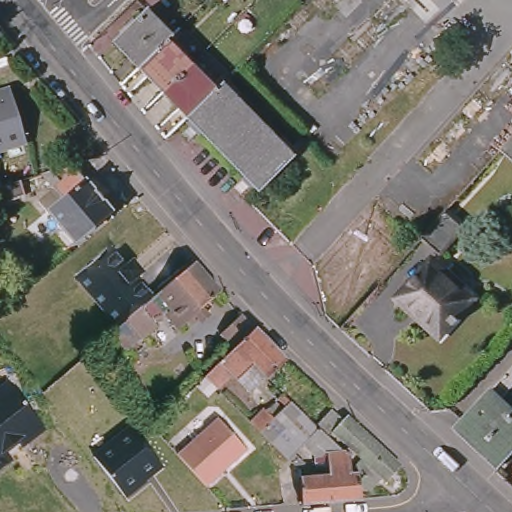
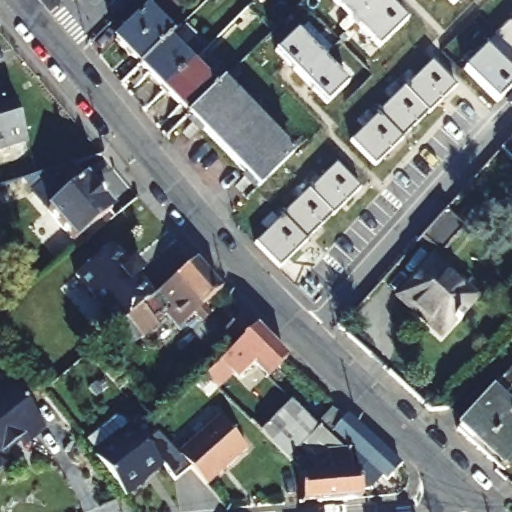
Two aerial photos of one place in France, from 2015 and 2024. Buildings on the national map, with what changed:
new [(330,0),(378,0),(354,24),(330,0)]
new [(354,24),(378,0),(384,0),(406,23),(378,49),(354,24)]
new [(458,0),(452,7),(445,0),(458,0)]
unchanged [(168,39),(139,67),(114,41),(146,10),(171,35),(168,39)]
new [(510,24),(512,22),(512,51),(495,34),(508,21),(510,24)]
new [(296,31),(321,58),(300,78),(274,51),(296,31)]
new [(512,63),(506,69),(512,75),(512,82),(502,93),(504,95),(496,103),(464,70),(484,49),(483,46),(495,34),(512,51),(512,63)]
unchanged [(168,39),(191,64),(163,91),(139,67),(168,39)]
new [(321,58),(347,84),(326,104),(300,78),(321,58)]
new [(428,113),(404,89),(431,62),(455,87),(428,114),(427,113),(428,113)]
unchanged [(188,116),(163,91),(191,64),(216,88),(188,116)]
unchanged [(259,188),(188,116),(216,88),(220,84),(291,155),(259,188)]
new [(400,139),(376,114),(403,88),(428,113),(401,139),(400,139)]
unchanged [(8,89),(23,140),(0,148),(0,91),(8,89)]
new [(349,141),(376,115),(400,139),(401,139),(402,139),(374,166),(349,141)]
unchanged [(79,234),(51,203),(66,190),(48,168),(75,159),(115,204),(79,234)]
new [(335,164),(360,189),(333,216),(331,215),(332,214),(309,190),(335,164)]
demolished [(0,201),(0,186),(19,180),(23,194),(0,201)]
new [(305,241),(281,217),(308,189),(332,214),(331,215),(305,241)]
unchanged [(439,250),(423,235),(446,209),(463,224),(439,250)]
new [(255,244),(281,218),(305,241),(306,240),(307,242),(279,269),(255,244)]
new [(109,246),(155,294),(126,319),(103,294),(95,300),(74,278),(109,246)]
unchanged [(439,337),(396,299),(433,258),(475,295),(439,337)]
unchanged [(194,260),(219,290),(178,325),(166,312),(171,308),(165,300),(159,305),(162,309),(151,317),(120,344),(109,334),(194,260)]
unchanged [(209,377),(238,348),(226,335),(247,315),(259,328),(291,359),(276,373),(273,377),(271,376),(254,392),(236,374),(221,389),(209,378),(209,377)]
unchanged [(44,428),(20,446),(16,440),(6,448),(7,452),(12,458),(0,467),(0,388),(8,382),(44,428)]
unchanged [(456,428),(493,387),(512,404),(512,453),(499,467),(456,428)]
unchanged [(320,474),(318,454),(306,443),(291,459),(263,431),(275,419),(276,418),(277,417),(284,411),(286,409),(294,400),(317,422),(321,425),(329,433),(339,443),(339,446),(341,450),(351,449),(351,454),(354,471),(360,471),(363,470),(365,491),(366,492),(366,499),(306,504),(304,482),(304,475),(320,474)]
unchanged [(221,417),(249,449),(204,488),(176,455),(221,417)]
unchanged [(345,440),(339,446),(339,443),(329,433),(344,417),(356,429),(361,424),(404,465),(391,482),(386,478),(373,490),(365,491),(363,470),(369,463),(345,440)]
unchanged [(126,496),(91,455),(126,425),(162,464),(126,496)]

